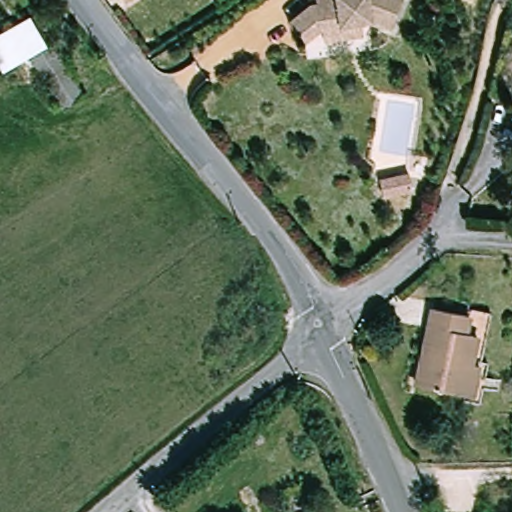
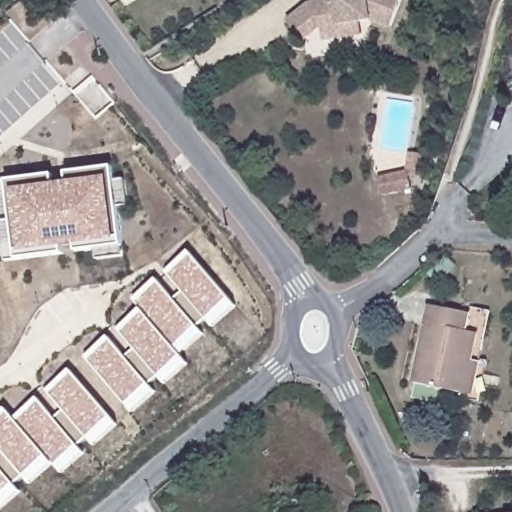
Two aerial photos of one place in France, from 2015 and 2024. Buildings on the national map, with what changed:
unchanged [(329,38),(321,27),(306,42),(289,25),(311,5),(317,3),(316,0),(401,0),(392,25),(373,17),(361,20),(358,32),(329,38)]
demolished [(28,55),(3,70),(0,66),(0,32),(29,16),(44,46),(51,42),(55,47),(64,62),(43,75),(41,76),(31,60),(28,55)]
new [(408,159),(424,160),(424,178),(408,177),(411,190),(381,195),(378,180),(407,174),(408,159)]
new [(0,217),(0,184),(8,182),(53,175),(55,185),(68,182),(68,174),(111,167),(113,181),(124,181),(128,207),(119,211),(123,247),(124,257),(97,261),(95,250),(78,252),(77,246),(63,247),(64,253),(18,260),(5,261),(0,217)]
new [(108,336),(126,356),(135,350),(116,328),(141,308),(133,299),(156,278),(175,299),(183,293),(165,272),(189,252),(236,305),(211,327),(206,321),(199,327),(203,333),(180,355),(187,363),(163,383),(158,377),(151,384),(156,391),(132,412),(84,357),(108,336)]
unchanged [(474,397),(463,395),(415,384),(431,307),(469,315),(465,332),(476,335),(470,362),(480,365),(474,397)]
new [(15,417),(38,397),(56,418),(63,411),(46,392),(71,370),(118,423),(93,445),(87,437),(79,446),(84,452),(61,472),(52,463),(29,484),(23,477),(15,483),(21,490),(0,511),(0,413),(6,408),(15,417)]

